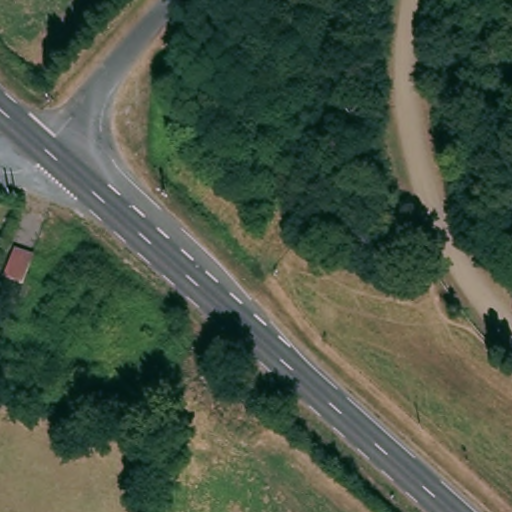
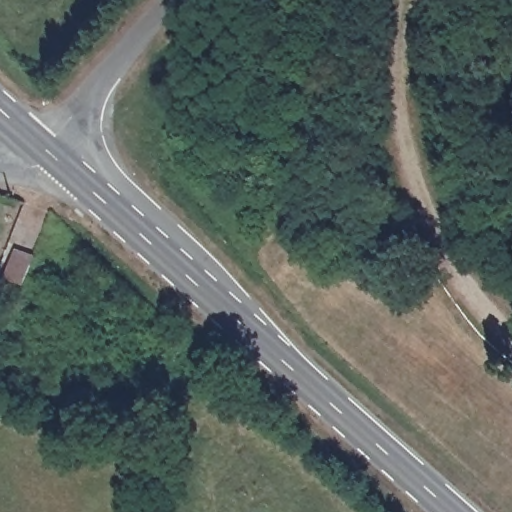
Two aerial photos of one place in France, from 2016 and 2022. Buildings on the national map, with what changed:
unchanged [(21,283),(1,276),(10,248),(29,254),(21,283)]

